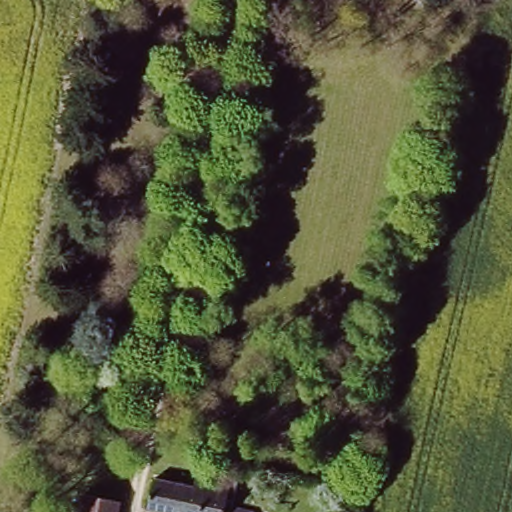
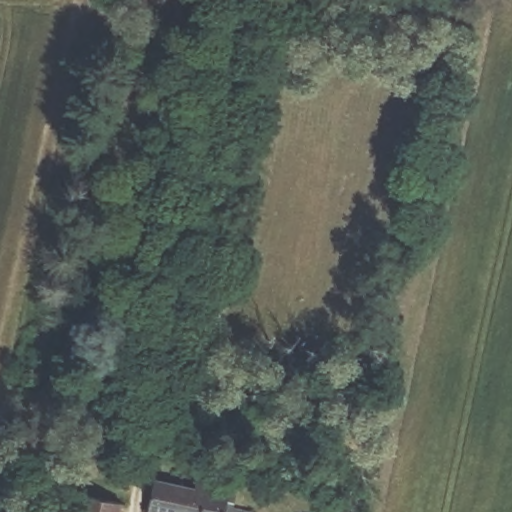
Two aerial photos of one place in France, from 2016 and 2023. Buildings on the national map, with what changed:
unchanged [(155,477),(195,486),(199,472),(237,481),(232,505),(254,511),(253,512),(164,512),(146,508),(155,477)]
unchanged [(84,491),(118,500),(116,512),(79,512),(84,491)]

